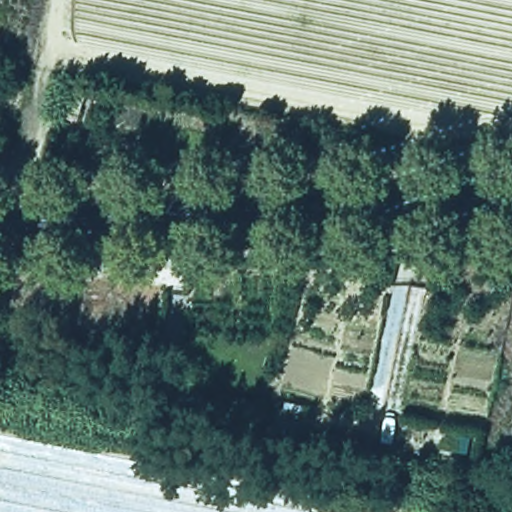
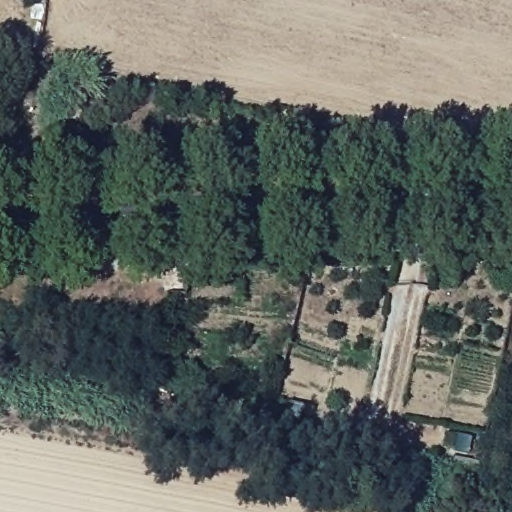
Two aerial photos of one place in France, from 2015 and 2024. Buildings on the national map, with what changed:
unchanged [(68,80),(88,87),(85,106),(61,100),(68,80)]

